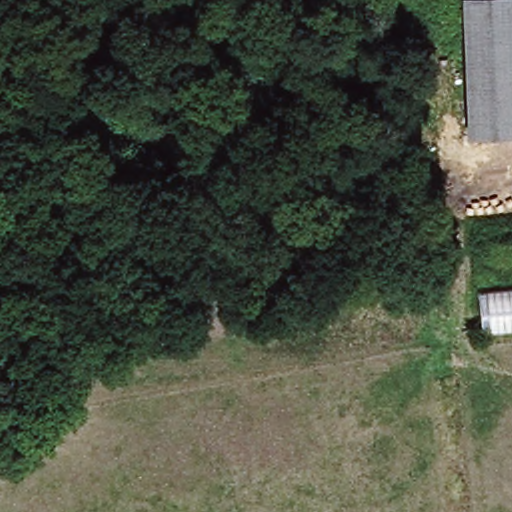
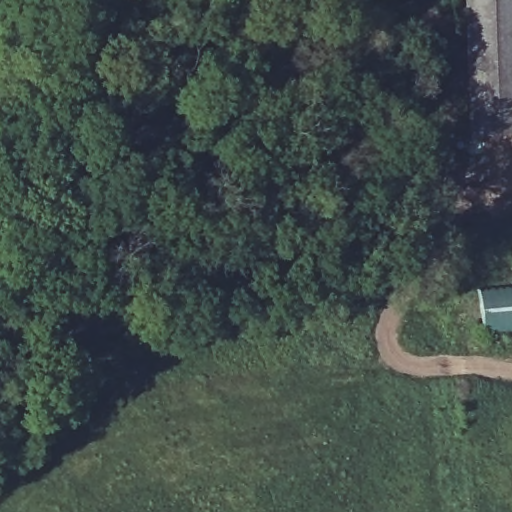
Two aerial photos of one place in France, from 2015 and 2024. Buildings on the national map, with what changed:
unchanged [(467,142),(460,7),(512,5),(512,140),(467,142)]
unchanged [(483,335),(480,288),(512,286),(512,333),(483,335)]

